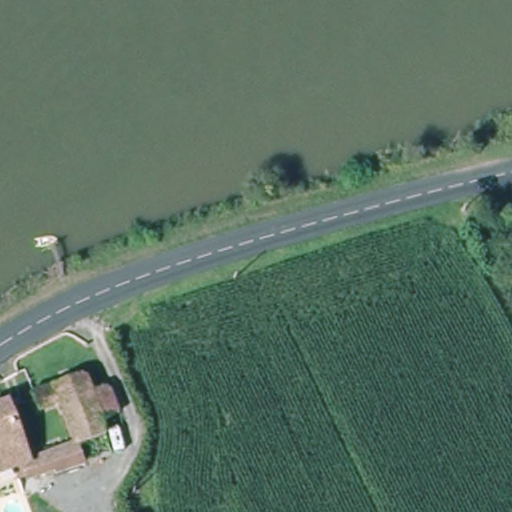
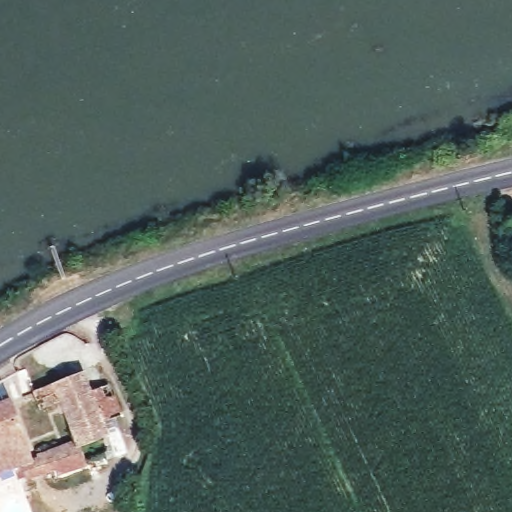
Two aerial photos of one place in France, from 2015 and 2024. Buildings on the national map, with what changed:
unchanged [(99,384),(106,380),(116,407),(97,415),(101,426),(73,438),(59,397),(38,403),(33,388),(92,365),(99,384)]
unchanged [(20,456),(0,464),(0,406),(20,456)]

